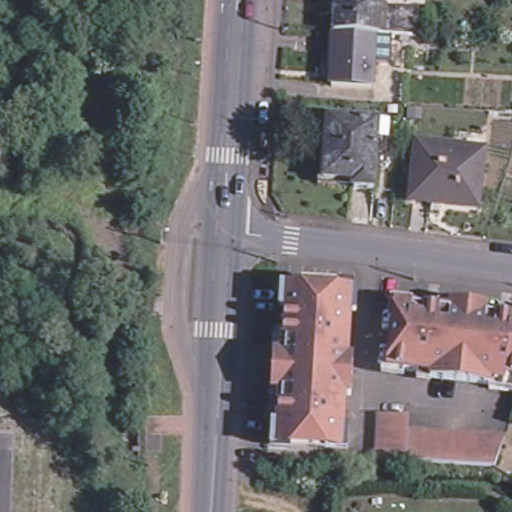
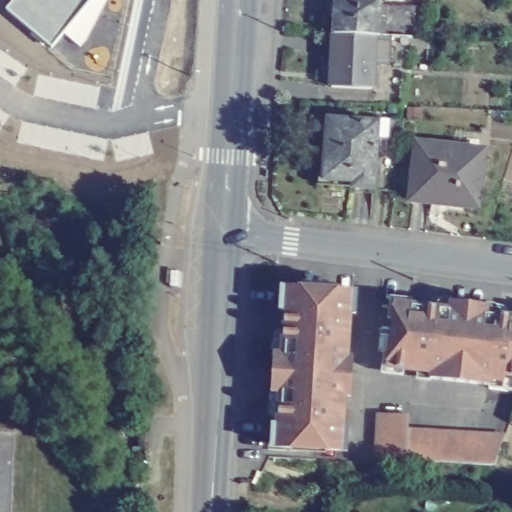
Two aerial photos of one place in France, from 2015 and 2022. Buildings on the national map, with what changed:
new [(6,6),(13,0),(91,0),(50,46),(6,6)]
unchanged [(331,0),(375,0),(375,1),(415,3),(412,35),(403,35),(402,41),(392,41),(390,61),(368,60),(366,85),(326,83),(329,31),(331,0)]
unchanged [(373,191),(352,190),(353,184),(323,182),(327,121),(378,125),(373,191)]
unchanged [(416,144),(485,151),(477,209),(410,201),(416,144)]
unchanged [(278,444),(291,297),(355,302),(352,337),(348,337),(347,349),(351,350),(346,415),(341,415),(340,427),(345,427),(342,450),(278,444)]
unchanged [(491,382),(490,382),(431,376),(432,372),(418,371),(418,375),(388,371),(395,307),(512,319),(512,392),(508,392),(490,390),(491,382)]
unchanged [(496,459),(495,463),(492,462),(479,461),(465,460),(450,459),(435,458),(420,456),(406,455),(376,453),(378,438),(379,423),(380,408),(410,410),(409,425),(423,426),(438,428),(452,429),(467,430),(481,431),(502,433),(505,433),(496,459)]

